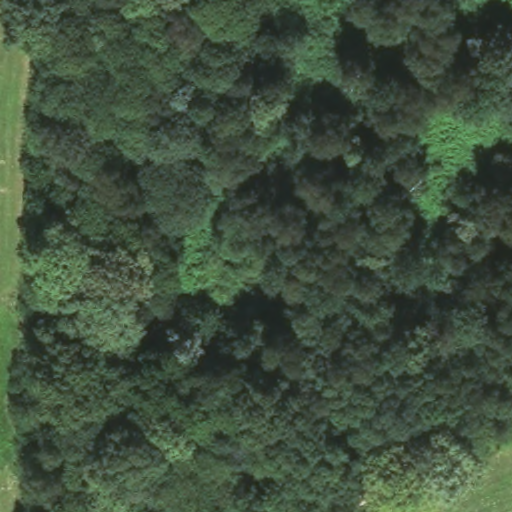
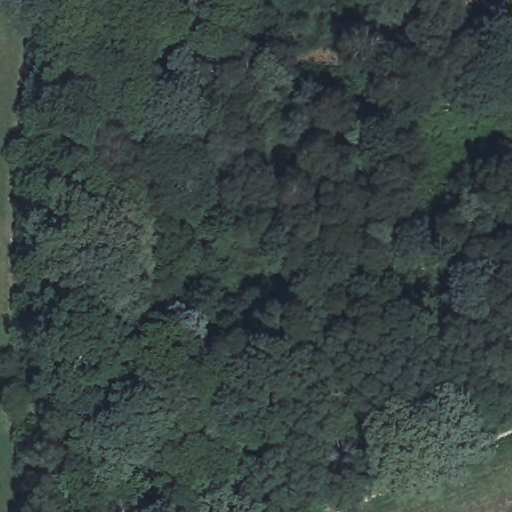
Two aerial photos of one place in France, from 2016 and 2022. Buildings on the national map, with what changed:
[]

